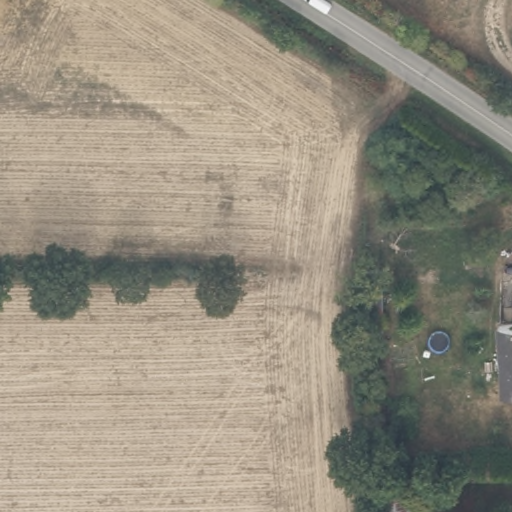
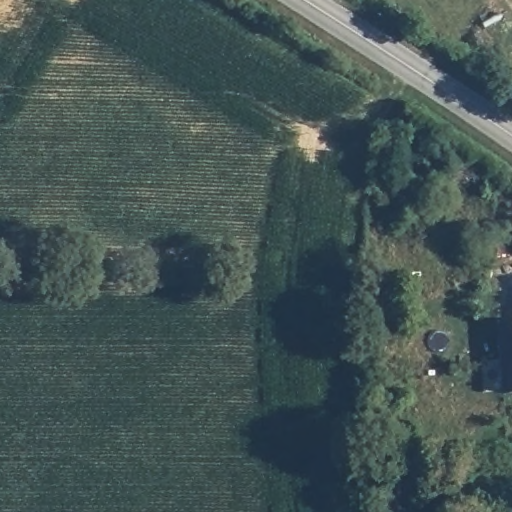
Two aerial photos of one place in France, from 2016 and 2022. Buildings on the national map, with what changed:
unchanged [(512,324),(512,394),(503,395),(501,325),(512,324)]
unchanged [(411,476),(412,512),(382,512),(382,475),(411,476)]

